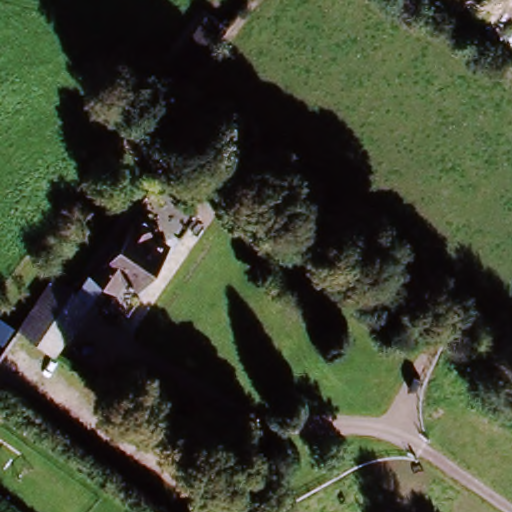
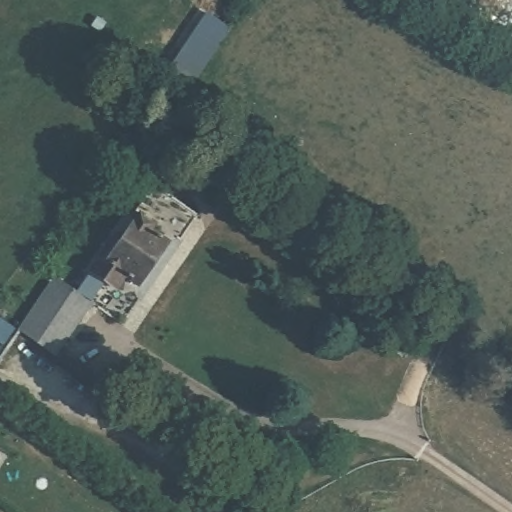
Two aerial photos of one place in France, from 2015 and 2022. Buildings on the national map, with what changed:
new [(195,78),(173,62),(207,12),(231,29),(195,78)]
unchanged [(119,236),(136,214),(139,210),(150,216),(140,233),(142,234),(155,245),(129,279),(115,272),(114,272),(107,281),(87,268),(110,232),(111,231),(119,236)]
unchanged [(55,277),(69,286),(92,301),(53,355),(20,331),(23,325),(40,300),(55,277)]

